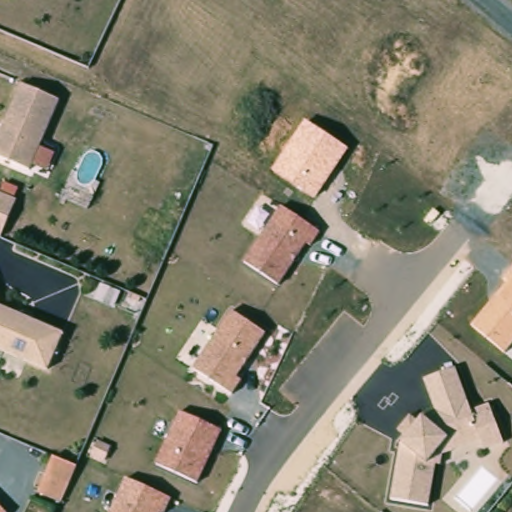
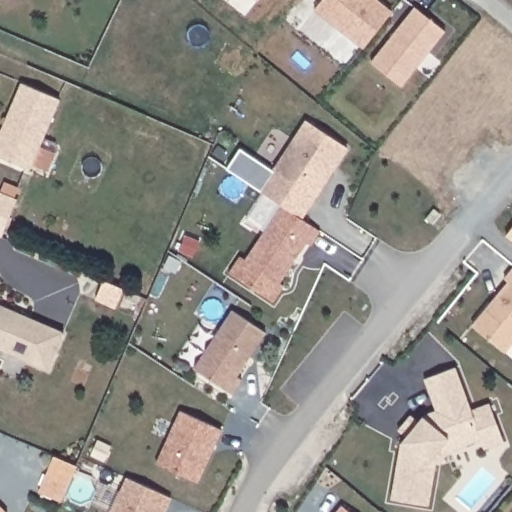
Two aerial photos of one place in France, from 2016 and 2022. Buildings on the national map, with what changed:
new [(392,10),(364,48),(314,9),(321,0),(379,0),(392,10)]
new [(411,9),(442,33),(398,88),(367,64),(411,9)]
unchanged [(61,101),(31,172),(0,159),(0,141),(22,85),(61,101)]
unchanged [(315,199),(271,171),(305,119),(350,149),(315,199)]
new [(303,218),(280,202),(227,169),(240,151),(271,171),(315,199),(303,218)]
unchanged [(4,239),(0,237),(0,194),(20,202),(4,239)]
unchanged [(322,230),(311,247),(305,244),(278,284),(243,260),(280,202),(322,230)]
new [(506,236),(512,229),(512,240),(506,236)]
unchanged [(505,353),(472,326),(508,283),(504,279),(512,270),(512,345),(505,353)]
unchanged [(46,369),(0,349),(0,305),(63,333),(46,369)]
unchanged [(268,331),(237,376),(241,378),(230,393),(192,368),(231,308),(268,331)]
unchanged [(471,409),(490,403),(504,440),(483,447),(480,441),(442,455),(442,463),(435,463),(429,504),(390,497),(400,441),(405,435),(397,430),(409,414),(416,420),(423,413),(434,409),(423,377),(456,366),(471,409)]
unchanged [(222,428),(199,482),(155,464),(180,409),(222,428)]
unchanged [(78,465),(61,502),(36,492),(52,454),(78,465)]
unchanged [(164,512),(109,512),(125,476),(172,497),(164,512)]
unchanged [(0,506),(0,480),(13,495),(0,506)]
new [(0,512),(0,511),(1,512),(0,512)]

